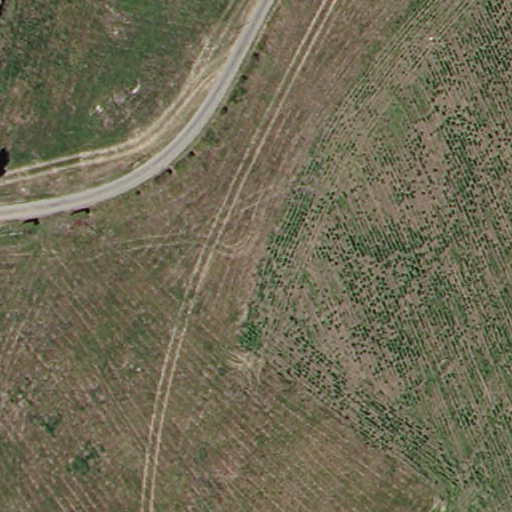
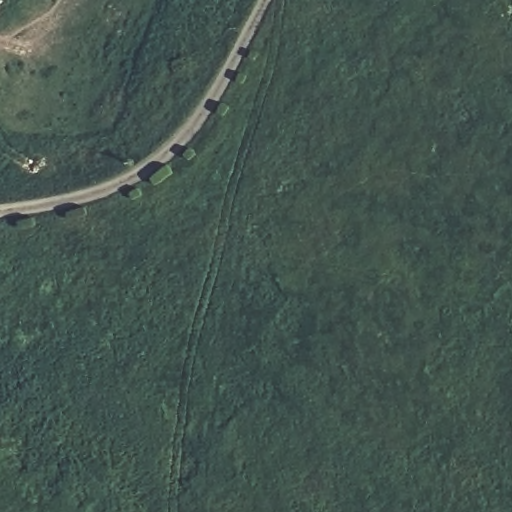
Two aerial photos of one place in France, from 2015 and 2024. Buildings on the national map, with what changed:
unchanged [(0,19),(0,0),(6,0),(0,19)]

